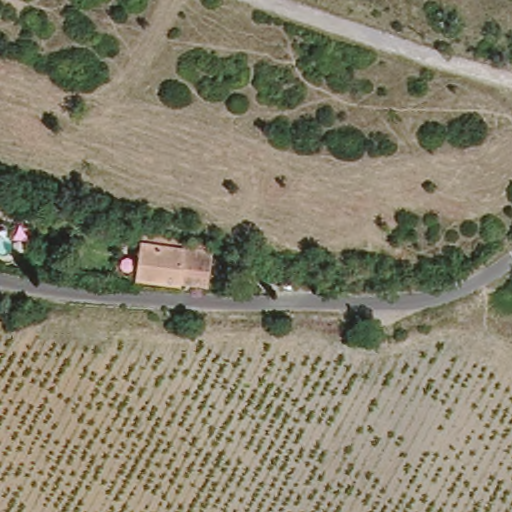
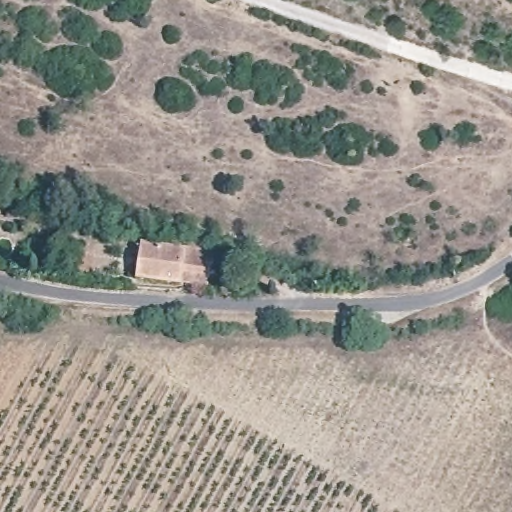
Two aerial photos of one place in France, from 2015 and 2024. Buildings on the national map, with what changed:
unchanged [(212,248),(210,271),(183,267),(181,278),(137,272),(142,238),(212,248)]

